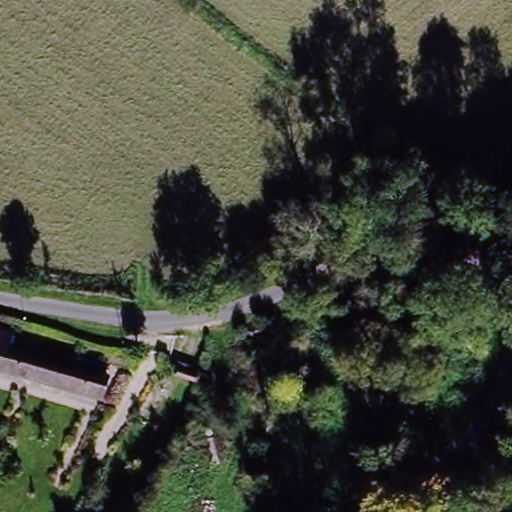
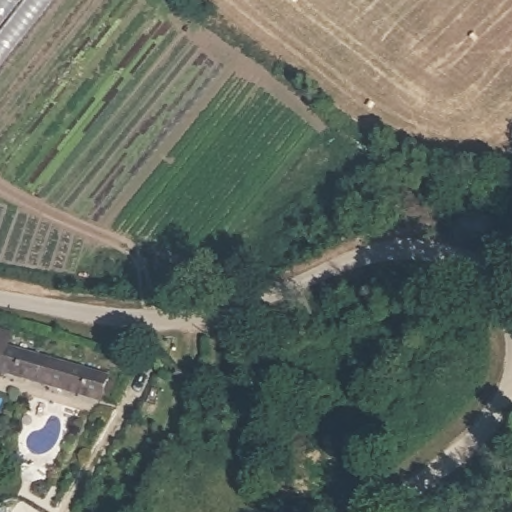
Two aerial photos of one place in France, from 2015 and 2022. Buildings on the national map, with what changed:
new [(0,72),(0,0),(58,0),(0,72)]
unchanged [(0,375),(0,353),(105,383),(99,402),(0,375)]

